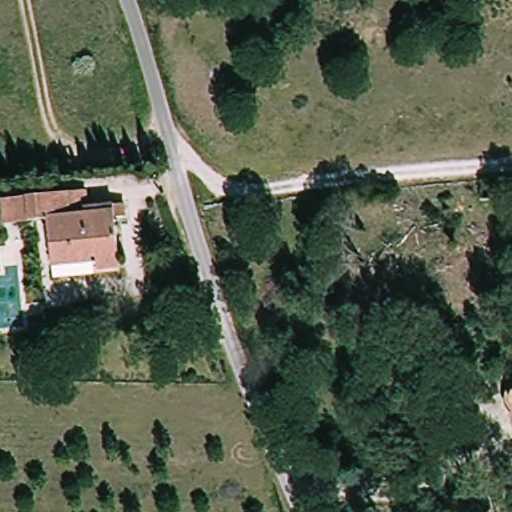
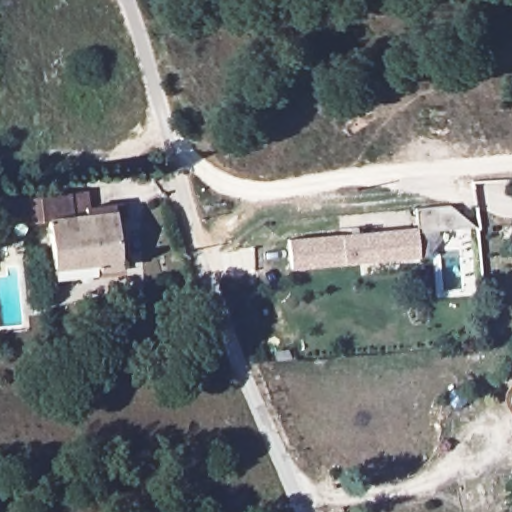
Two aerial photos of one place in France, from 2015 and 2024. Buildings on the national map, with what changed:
unchanged [(71,189),(76,211),(119,209),(124,262),(55,271),(51,224),(22,225),(20,197),(71,189)]
new [(414,208),(449,204),(475,228),(417,233),(419,256),(290,269),(287,239),(415,228),(414,208)]
unchanged [(512,400),(511,398),(511,396),(512,394),(512,392),(512,402),(512,400)]

